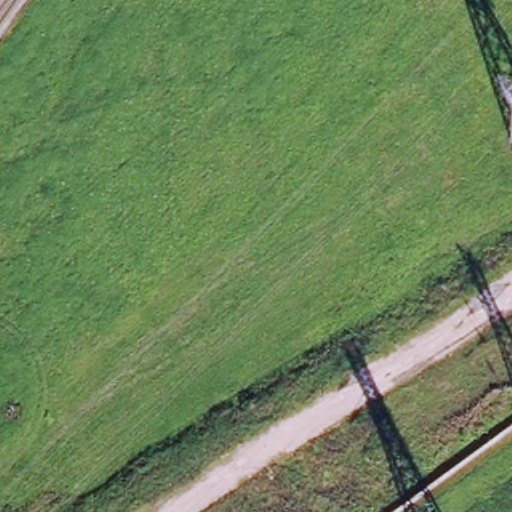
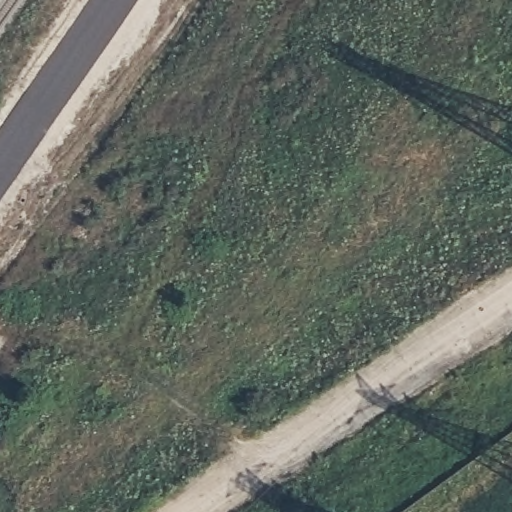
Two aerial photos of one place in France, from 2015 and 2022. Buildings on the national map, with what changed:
[]

